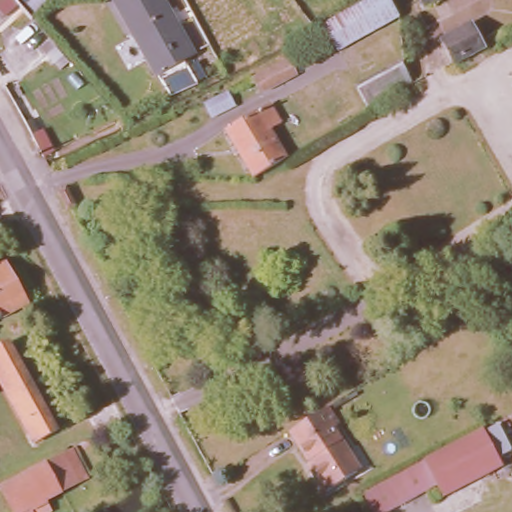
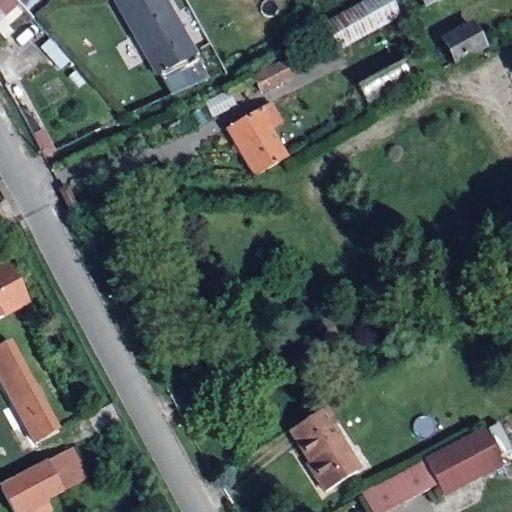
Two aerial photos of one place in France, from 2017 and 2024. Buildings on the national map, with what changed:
unchanged [(6,0),(0,5),(0,0),(6,0)]
unchanged [(170,0),(173,5),(182,19),(198,45),(187,51),(192,59),(166,74),(161,66),(121,0),(170,0)]
unchanged [(324,30),(376,0),(389,0),(398,16),(337,51),(324,30)]
unchanged [(422,0),(437,0),(425,6),(422,0)]
unchanged [(22,1),(37,17),(24,30),(9,12),(22,1)]
unchanged [(445,46),(472,30),(486,52),(457,67),(445,46)]
unchanged [(417,74),(371,101),(360,80),(404,55),(417,74)]
unchanged [(255,80),(292,65),(298,80),(260,94),(255,80)]
unchanged [(205,101),(226,90),(233,102),(210,114),(205,101)]
unchanged [(229,125),(274,101),(283,120),(272,126),(287,153),(254,171),(229,125)]
unchanged [(9,261),(32,305),(0,321),(0,266),(9,261)]
unchanged [(12,337),(61,424),(36,437),(16,400),(21,397),(0,360),(0,343),(12,337)]
unchanged [(340,423),(337,425),(351,447),(349,450),(361,468),(330,489),(314,465),(316,463),(292,428),(328,405),(340,423)]
unchanged [(442,480),(429,456),(486,425),(506,460),(448,492),(442,480)]
unchanged [(6,490),(4,485),(50,461),(76,447),(93,475),(65,490),(49,498),(56,510),(52,512),(17,512),(6,490)]
unchanged [(388,512),(381,512),(367,491),(429,456),(442,480),(388,512)]

